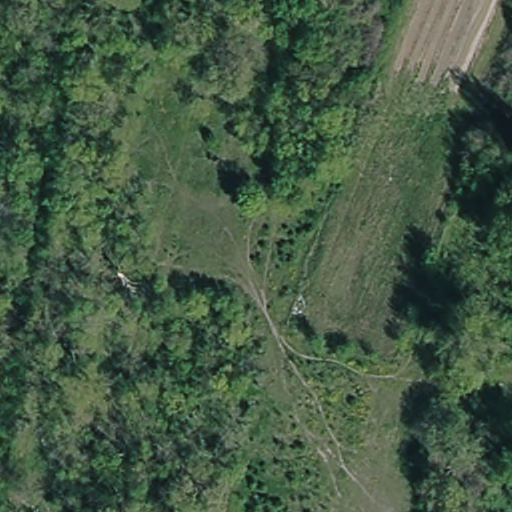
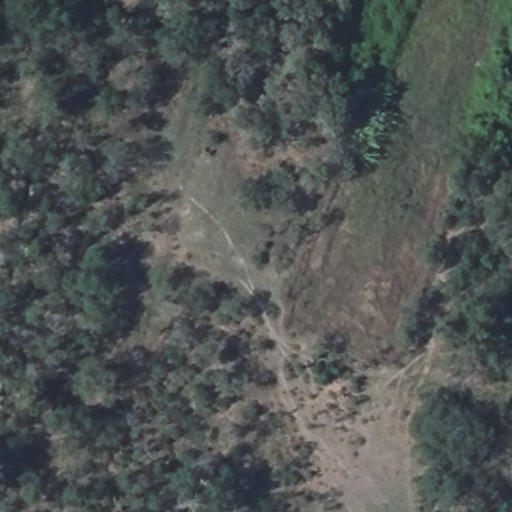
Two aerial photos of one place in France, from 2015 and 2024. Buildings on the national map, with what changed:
[]

